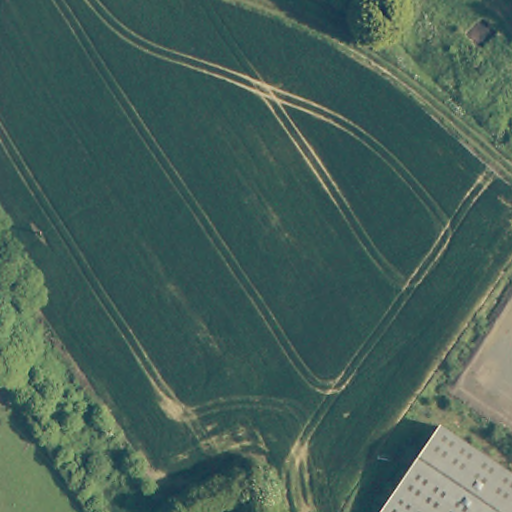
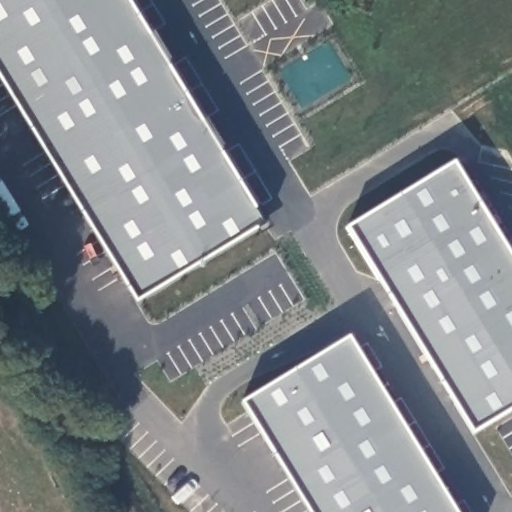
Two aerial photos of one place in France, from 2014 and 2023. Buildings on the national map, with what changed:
new [(223,154),(266,225),(137,304),(0,80),(0,0),(129,0),(150,34),(155,30),(175,64),(170,67),(202,121),(207,118),(228,151),(223,154)]
new [(512,254),(512,411),(473,435),(347,227),(455,161),(512,254)]
new [(454,507),(457,512),(308,512),(241,403),(350,337),(372,374),(377,371),(396,402),(391,405),(435,476),(440,473),(459,504),(454,507)]
demolished [(512,512),(381,512),(439,426),(512,476),(512,512)]

